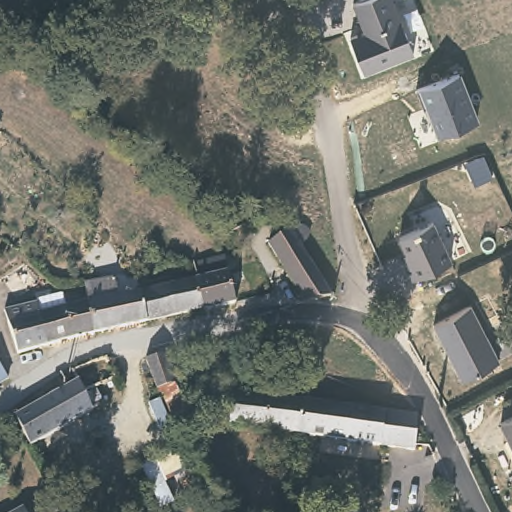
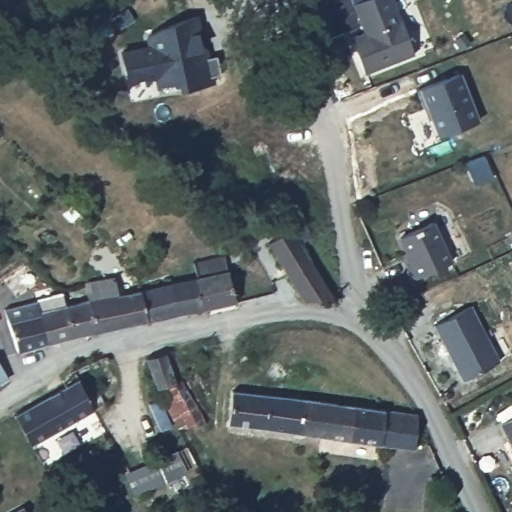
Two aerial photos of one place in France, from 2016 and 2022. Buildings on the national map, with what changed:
unchanged [(365,74),(353,37),(365,33),(355,3),(365,0),(392,0),(414,55),(365,74)]
new [(180,92),(178,86),(159,90),(156,79),(151,80),(150,77),(136,80),(136,83),(126,85),(120,52),(149,45),(146,37),(200,14),(210,56),(216,56),(220,75),(215,76),(217,82),(180,92)]
unchanged [(435,140),(418,91),(463,75),(478,122),(435,140)]
unchanged [(410,275),(403,260),(408,258),(398,232),(431,219),(448,259),(410,275)]
unchanged [(300,234),(305,232),(308,232),(311,233),(313,236),(315,238),(314,241),(313,242),(311,244),(310,245),(307,247),(305,247),(306,251),(325,300),(300,305),(296,298),(273,245),(299,231),(300,234)]
unchanged [(199,282),(195,268),(225,261),(234,307),(229,309),(206,314),(199,282)]
unchanged [(141,328),(90,339),(82,307),(77,287),(105,281),(110,302),(134,296),(141,328)]
unchanged [(141,328),(134,296),(199,282),(206,314),(141,328)]
unchanged [(15,360),(7,328),(4,317),(34,310),(33,307),(57,301),(60,313),(82,307),(90,339),(48,350),(32,355),(15,360)]
unchanged [(472,305),(499,361),(462,378),(435,322),(472,305)]
unchanged [(204,420),(177,425),(155,395),(153,392),(139,361),(156,355),(169,383),(172,382),(204,420)]
unchanged [(44,468),(34,453),(30,447),(13,420),(70,391),(65,381),(101,365),(115,390),(100,397),(106,410),(95,416),(64,431),(75,453),(44,468)]
unchanged [(0,386),(0,370),(7,382),(0,386)]
unchanged [(226,430),(230,396),(301,405),(298,438),(226,430)]
unchanged [(301,405),(417,420),(412,453),(298,438),(301,405)]
unchanged [(505,427),(512,424),(512,446),(505,427)]

